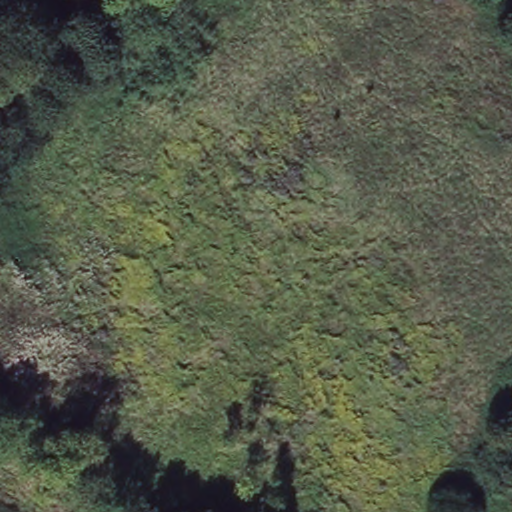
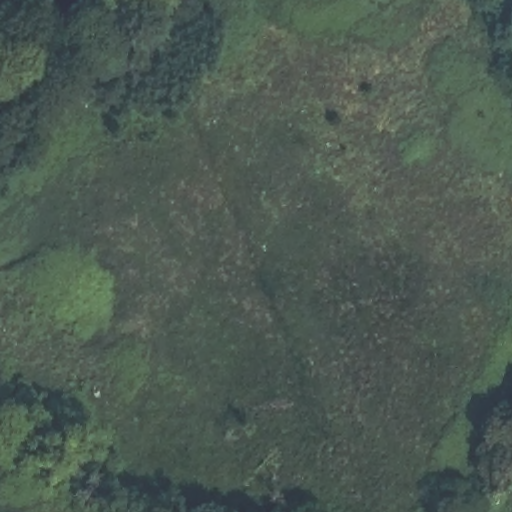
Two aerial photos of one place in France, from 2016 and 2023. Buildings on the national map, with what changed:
[]

